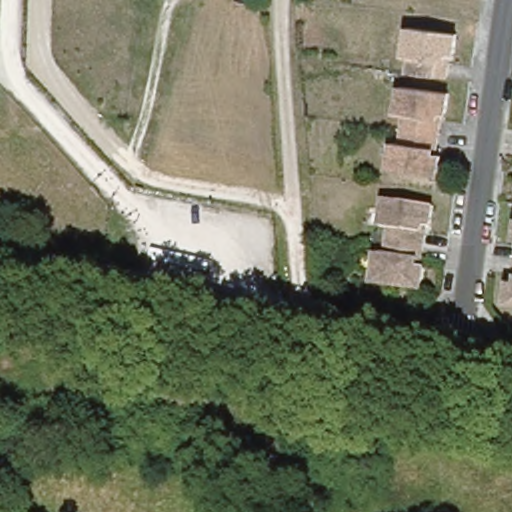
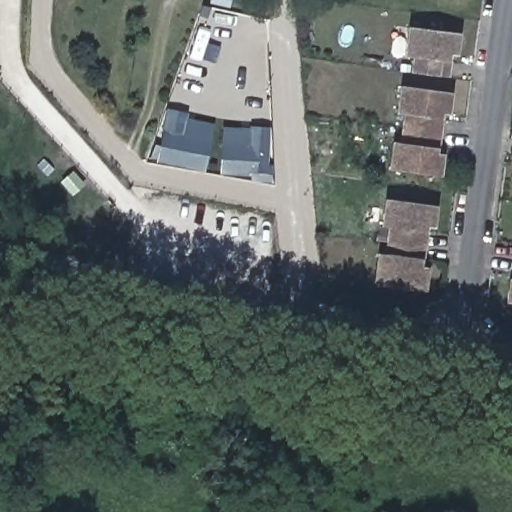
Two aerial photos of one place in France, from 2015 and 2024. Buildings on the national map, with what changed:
unchanged [(457,34),(455,52),(446,52),(444,62),(447,62),(446,75),(410,69),(411,56),(405,54),(408,26),(457,34)]
unchanged [(410,114),(401,112),(405,86),(455,92),(453,105),(444,104),(442,112),(446,114),(444,135),(408,130),(410,114)]
new [(157,162),(167,110),(186,114),(185,119),(212,125),(203,172),(157,162)]
new [(267,128),(270,182),(250,181),(250,174),(221,172),(224,127),(247,129),(267,128)]
unchanged [(444,135),(442,144),(438,144),(438,151),(447,153),(443,176),(395,170),(398,142),(405,144),(408,130),(444,135)]
unchanged [(390,232),(382,231),(387,200),(435,207),(432,229),(423,227),(422,236),(426,236),(425,250),(389,246),(390,232)]
unchanged [(425,250),(422,262),(418,262),(417,268),(426,270),(423,292),(375,285),(378,260),(386,261),(389,246),(425,250)]
unchanged [(507,303),(510,282),(512,283),(512,304),(507,303)]

